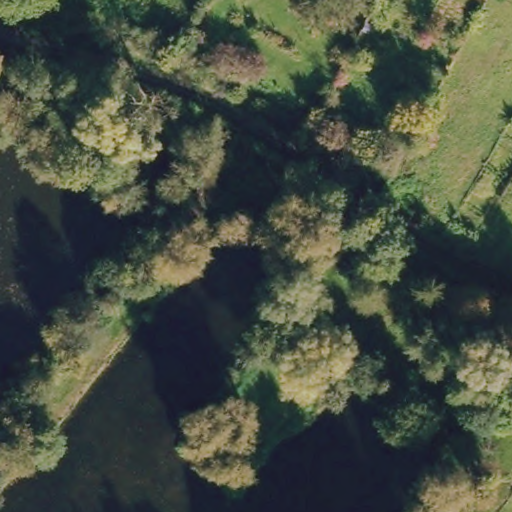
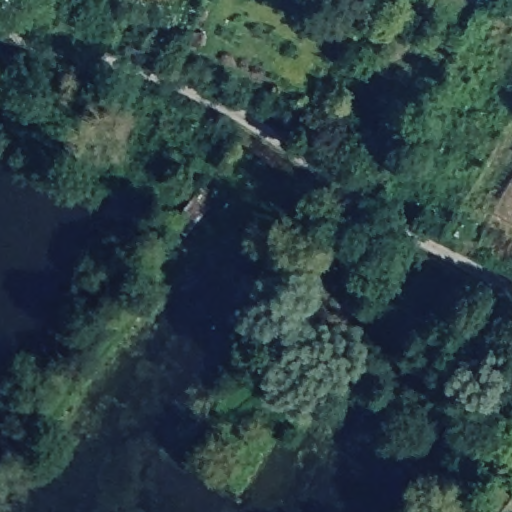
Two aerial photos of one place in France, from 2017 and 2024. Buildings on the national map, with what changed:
unchanged [(203,181),(214,191),(199,207),(188,197),(203,181)]

